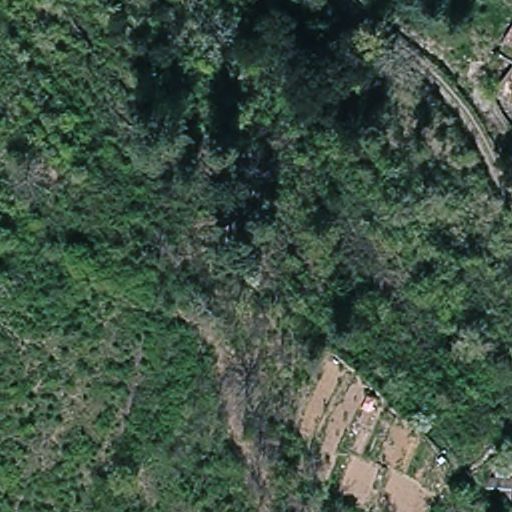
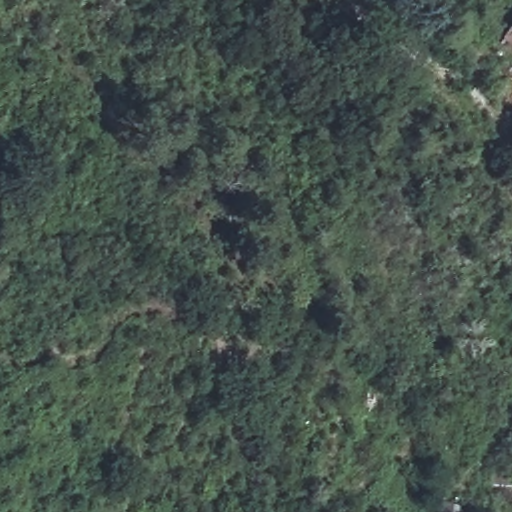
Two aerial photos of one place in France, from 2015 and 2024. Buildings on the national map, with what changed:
unchanged [(512,31),(512,42),(506,39),(512,31)]

